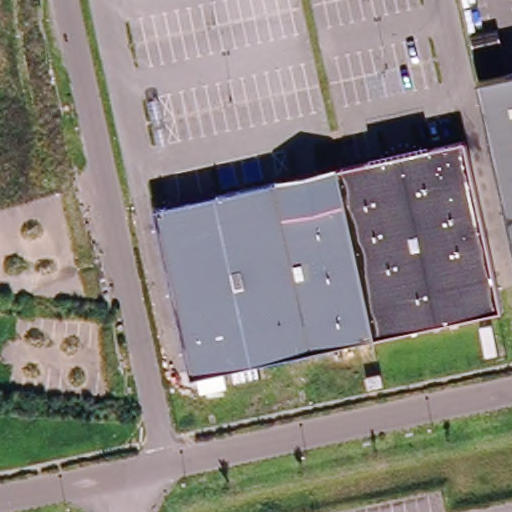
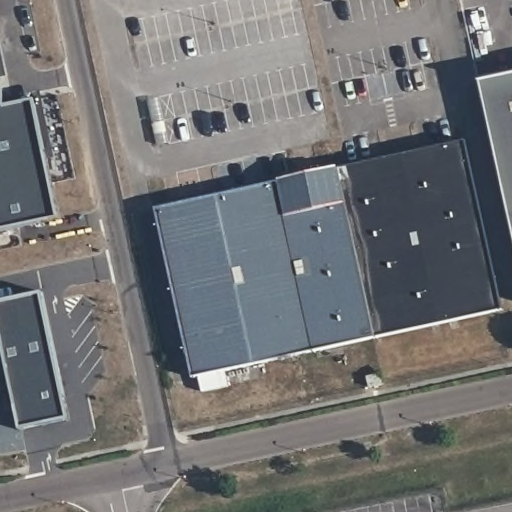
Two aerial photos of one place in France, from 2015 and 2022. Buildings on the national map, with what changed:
unchanged [(472,80),(512,71),(512,260),(472,80)]
new [(35,100),(60,220),(0,233),(0,79),(5,106),(35,100)]
unchanged [(464,136),(501,306),(375,334),(339,164),(464,136)]
unchanged [(195,375),(158,205),(339,164),(375,334),(195,375)]
new [(0,302),(43,293),(70,421),(20,431),(0,334),(0,302)]
unchanged [(366,361),(369,372),(354,376),(351,365),(366,361)]

